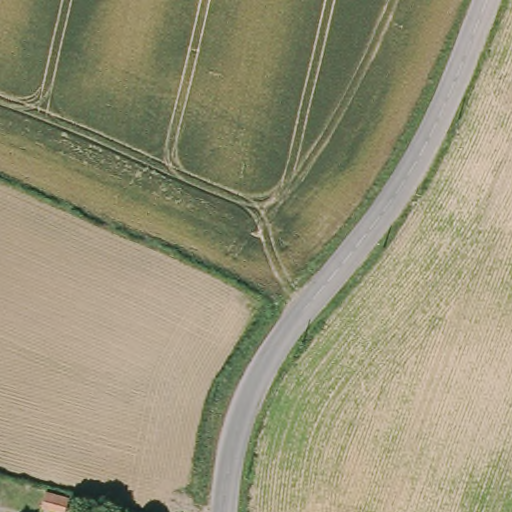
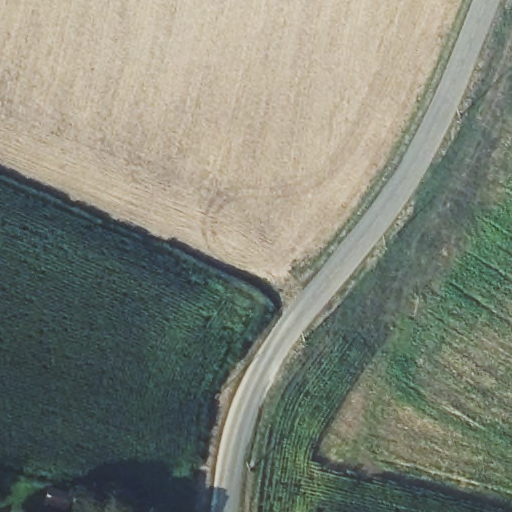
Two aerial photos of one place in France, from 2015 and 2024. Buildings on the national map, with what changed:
unchanged [(65,512),(63,512),(41,506),(46,490),(68,497),(65,512)]

